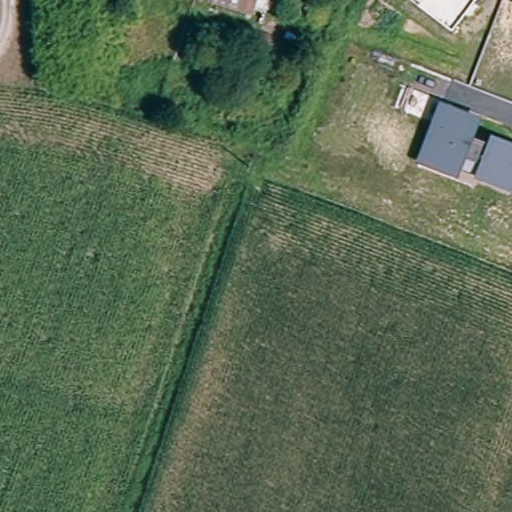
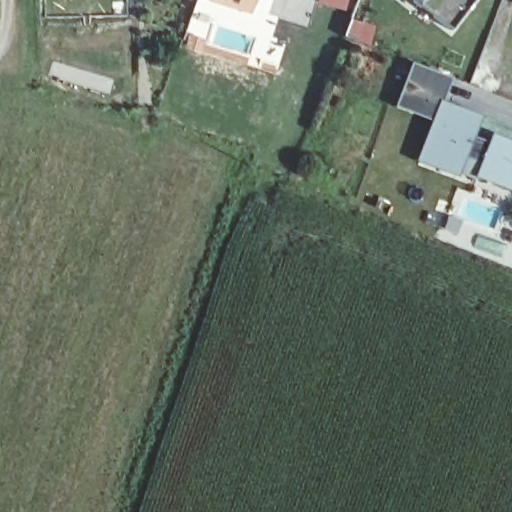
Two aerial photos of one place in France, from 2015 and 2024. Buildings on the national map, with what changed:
unchanged [(252,15),(215,1),(215,0),(258,0),(252,15)]
new [(318,0),(349,0),(345,12),(317,4),(318,0)]
unchanged [(449,30),(416,6),(409,0),(472,0),(449,30)]
new [(351,18),(377,27),(370,49),(344,39),(351,18)]
new [(410,64),(449,79),(440,102),(439,102),(431,121),(393,107),(410,64)]
unchanged [(474,177),(480,164),(466,158),(459,177),(416,159),(439,102),(480,119),(474,138),(486,144),(490,135),(512,143),(512,191),(474,177)]

